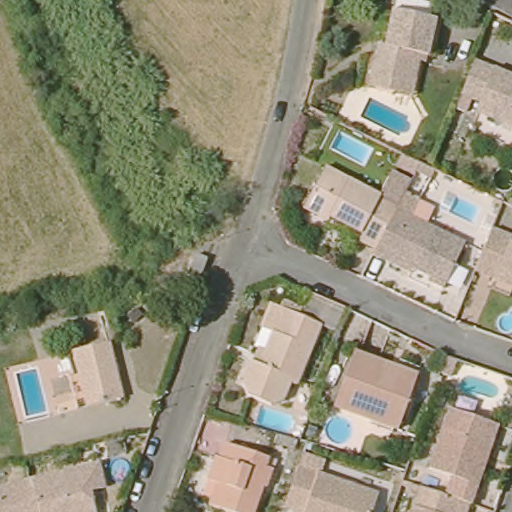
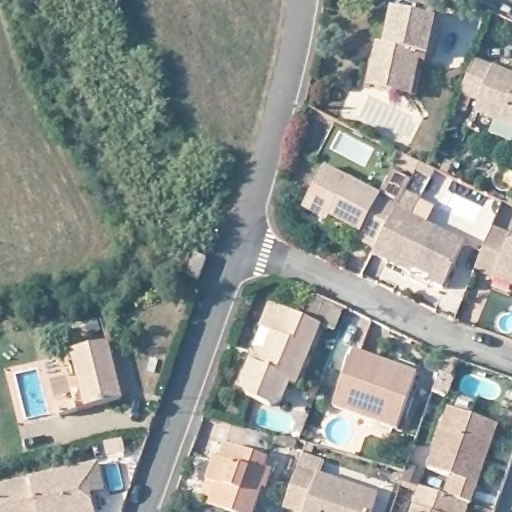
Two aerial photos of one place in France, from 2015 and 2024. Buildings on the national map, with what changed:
unchanged [(395,95),(375,91),(367,90),(372,67),(375,46),(384,47),(391,12),(435,21),(427,57),(420,57),(414,88),(412,99),(395,95)]
unchanged [(480,108),(462,101),(475,67),(512,81),(512,130),(477,117),(480,108)]
unchanged [(426,177),(415,171),(413,175),(396,167),(402,155),(408,157),(420,163),(430,168),(426,177)]
unchanged [(372,257),(375,252),(371,251),(356,243),(358,239),(325,222),(303,211),(325,169),(391,202),(398,206),(405,192),(420,200),(411,216),(467,243),(444,290),(430,283),(431,278),(412,270),(410,275),(387,264),(372,257)]
unchanged [(495,281),(476,273),(490,236),(509,243),(512,235),(512,288),(495,281)]
unchanged [(197,261),(192,278),(182,275),(188,257),(197,261)]
unchanged [(263,352),(270,334),(260,330),(269,305),(319,326),(295,386),(288,384),(280,402),(269,407),(245,398),(242,387),(252,362),(257,350),(263,352)]
unchanged [(60,408),(78,403),(72,380),(80,377),(76,355),(112,345),(126,401),(91,410),(90,410),(63,417),(60,408)]
unchanged [(383,367),(417,378),(413,386),(397,433),(333,411),(352,355),(383,367)]
unchanged [(457,362),(450,379),(440,376),(446,358),(457,362)]
unchanged [(442,496),(448,477),(425,469),(447,408),(487,422),(495,425),(480,469),(468,505),(465,504),(442,496)]
unchanged [(215,423),(210,439),(196,435),(202,420),(215,423)]
unchanged [(208,508),(200,507),(207,483),(205,483),(213,459),(218,461),(223,447),(267,461),(265,470),(270,472),(265,490),(260,488),(253,512),(210,512),(211,510),(208,508)]
unchanged [(26,483),(94,465),(100,490),(87,493),(92,512),(0,512),(0,491),(26,483)]
unchanged [(305,512),(284,505),(297,465),(380,492),(373,512),(305,512)]
unchanged [(418,487),(442,496),(465,504),(463,512),(409,512),(418,487)]

